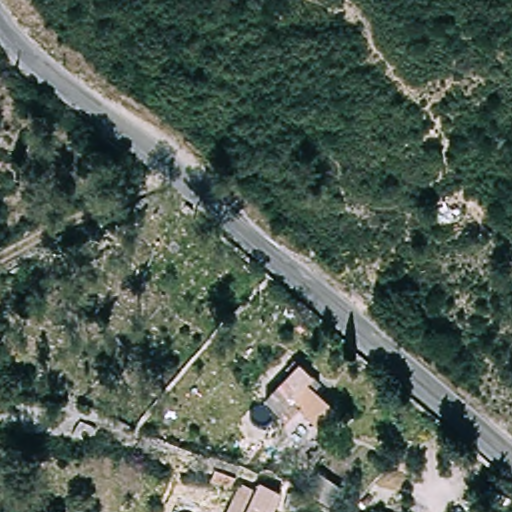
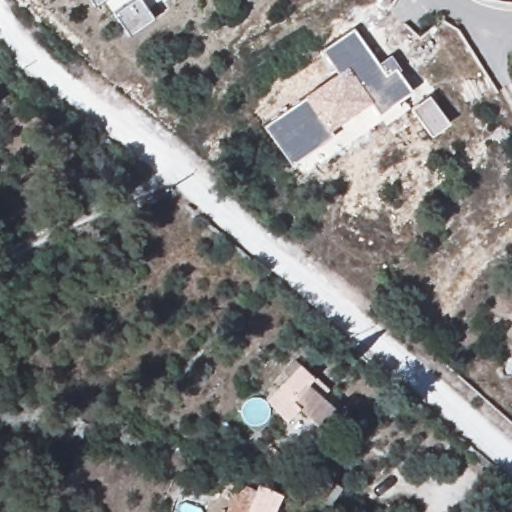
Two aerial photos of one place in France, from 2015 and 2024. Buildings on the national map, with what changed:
new [(94,3),(92,0),(99,0),(94,3)]
new [(290,164),(262,124),(305,95),(338,72),(321,48),(352,26),(376,61),(390,53),(400,68),(397,70),(410,89),(378,110),(370,100),(328,129),(332,135),(290,164)]
unchanged [(310,377),(304,385),(338,414),(321,433),(296,411),(285,422),(263,404),(297,365),(310,377)]
unchanged [(237,481),(231,492),(212,484),(216,473),(237,481)]
unchanged [(256,494),(260,487),(281,497),(274,512),(234,512),(245,490),(256,494)]

